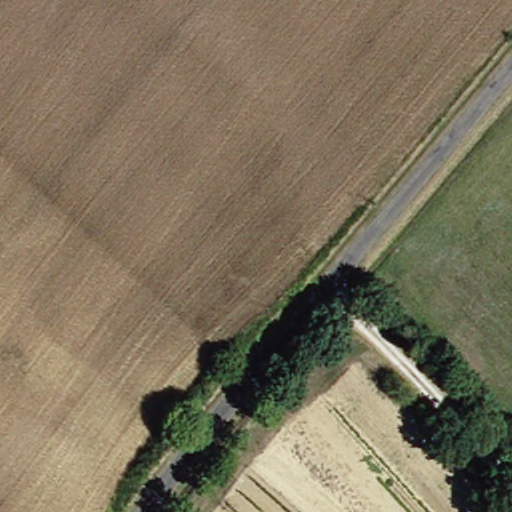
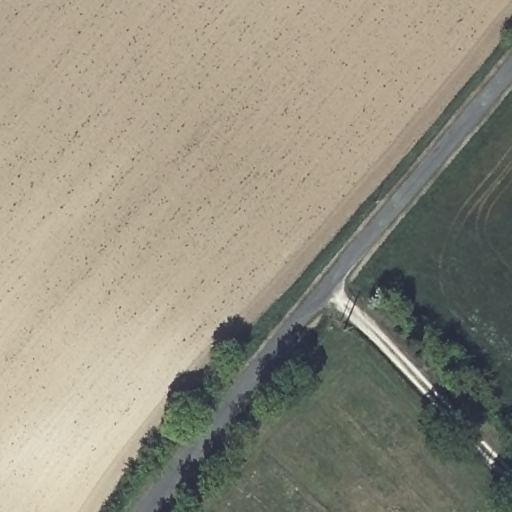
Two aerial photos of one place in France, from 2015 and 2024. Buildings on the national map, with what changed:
[]

